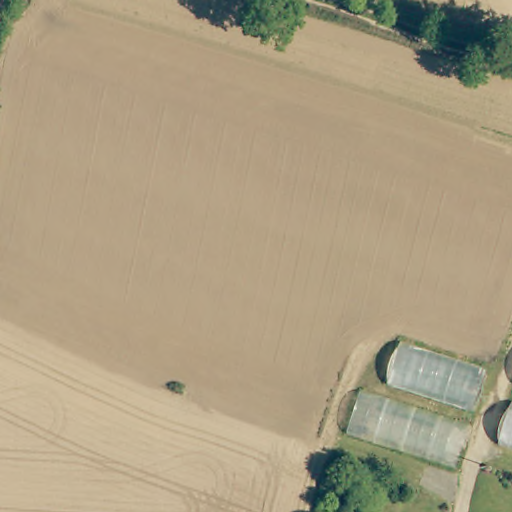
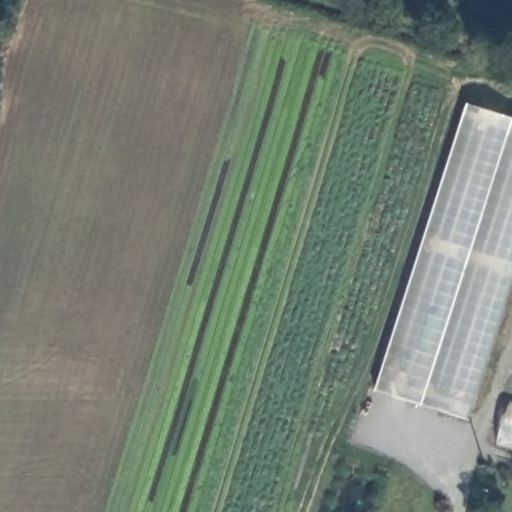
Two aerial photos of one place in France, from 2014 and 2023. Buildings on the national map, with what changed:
new [(512,276),(466,418),(376,390),(468,103),(512,118),(512,276)]
demolished [(498,369),(487,406),(392,377),(406,339),(498,369)]
unchanged [(510,400),(512,401),(512,450),(497,445),(510,400)]

